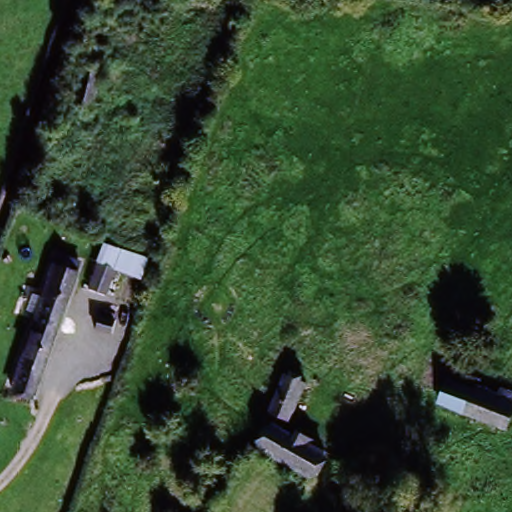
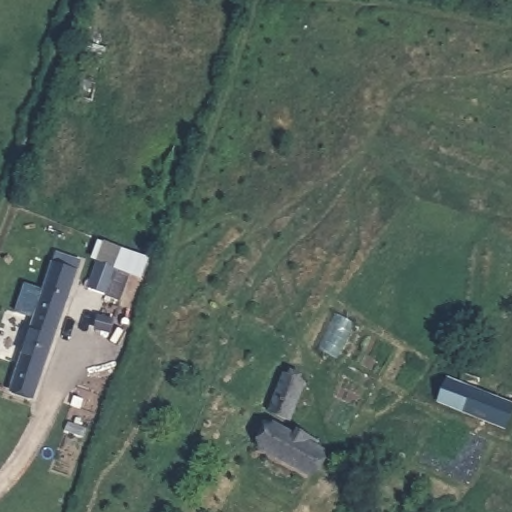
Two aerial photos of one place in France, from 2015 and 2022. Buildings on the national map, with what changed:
unchanged [(73,102),(87,62),(105,68),(88,121),(69,114),(57,111),(60,99),(73,102)]
unchanged [(73,293),(40,398),(25,394),(48,321),(39,317),(44,301),(54,304),(60,287),(73,293)]
unchanged [(84,295),(100,301),(92,325),(75,319),(84,295)]
unchanged [(499,394),(512,399),(512,429),(509,437),(439,412),(447,387),(455,391),(460,381),(475,386),(470,396),(495,405),(499,394)]
unchanged [(287,431),(269,422),(285,386),(304,393),(287,431)]
unchanged [(312,487),(262,458),(280,435),(320,460),(327,464),(312,487)]

